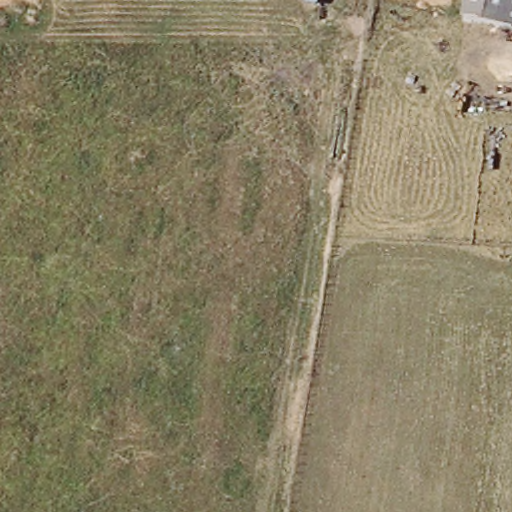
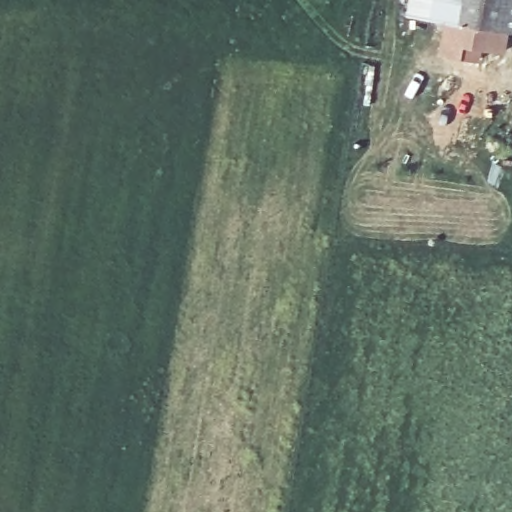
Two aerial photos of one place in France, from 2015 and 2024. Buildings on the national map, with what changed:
new [(464,0),(461,18),(510,26),(506,51),(482,46),(480,59),(442,53),(448,19),(408,15),(411,0),(464,0)]
unchanged [(512,0),(512,27),(461,18),(464,0),(512,0)]

